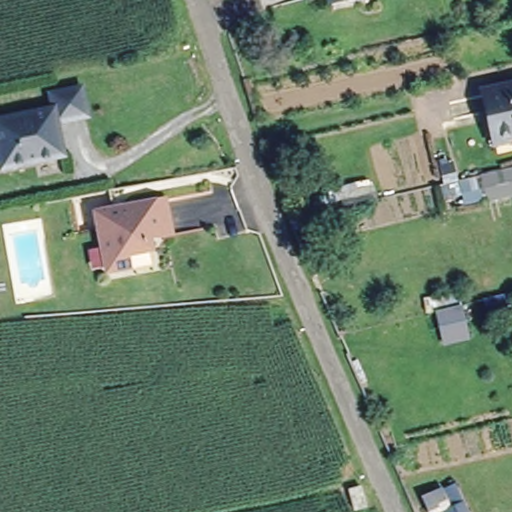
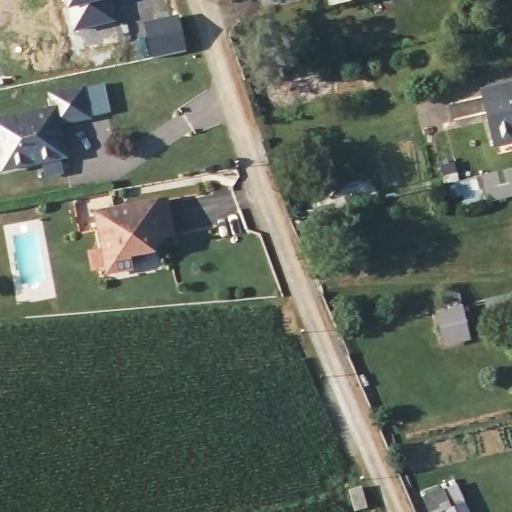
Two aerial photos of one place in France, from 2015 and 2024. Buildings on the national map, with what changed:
new [(73,34),(64,0),(112,0),(118,24),(73,34)]
unchanged [(327,6),(325,0),(356,0),(347,2),(327,6)]
new [(179,15),(187,51),(149,59),(141,22),(179,15)]
unchanged [(491,148),(479,94),(512,87),(512,143),(491,148)]
unchanged [(57,126),(64,160),(1,172),(0,166),(0,123),(52,113),(50,98),(83,92),(87,121),(57,126)]
unchanged [(512,166),(512,192),(489,197),(465,202),(459,178),(483,173),(512,166)]
unchanged [(166,233),(142,237),(145,247),(123,251),(125,267),(102,271),(91,212),(160,199),(166,233)]
unchanged [(437,344),(432,308),(460,303),(467,339),(437,344)]
unchanged [(362,486),(367,506),(354,509),(350,488),(362,486)]
unchanged [(463,512),(442,512),(437,502),(455,494),(463,512)]

